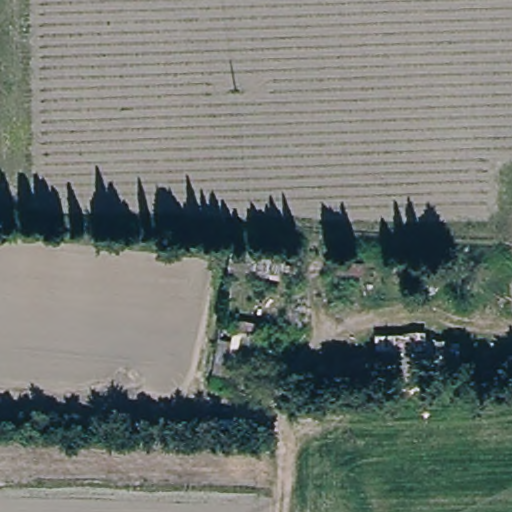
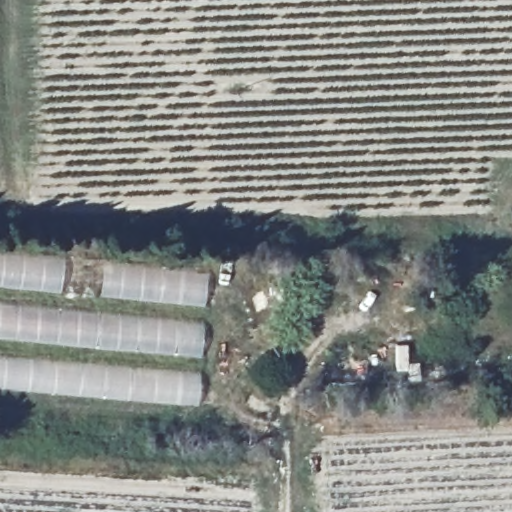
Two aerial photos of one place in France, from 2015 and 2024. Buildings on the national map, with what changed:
new [(205,304),(0,283),(0,251),(208,271),(205,304)]
new [(200,355),(0,336),(0,303),(204,322),(200,355)]
unchanged [(340,358),(458,347),(459,382),(343,388),(340,358)]
new [(197,402),(0,385),(0,354),(200,372),(197,402)]

